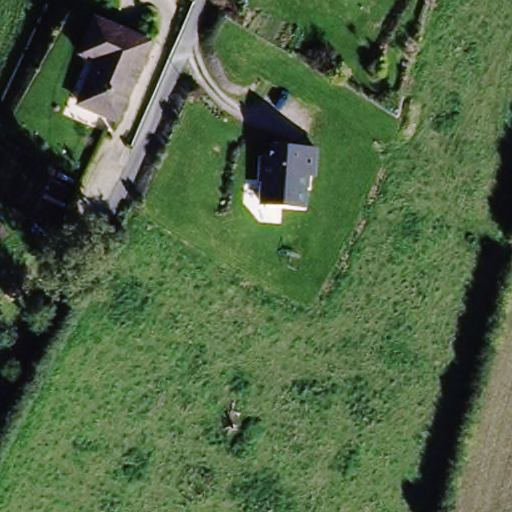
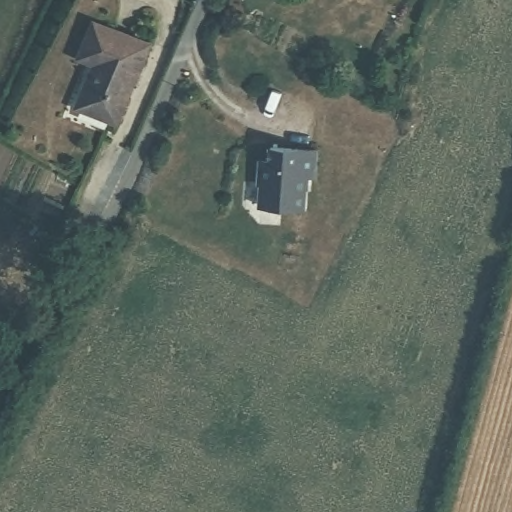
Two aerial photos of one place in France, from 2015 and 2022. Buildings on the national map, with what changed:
unchanged [(96,21),(150,50),(111,124),(73,104),(99,55),(82,46),(96,21)]
unchanged [(262,158),(270,160),(272,147),(315,155),(310,182),(303,181),(297,211),(256,203),(261,179),(258,178),(262,158)]

